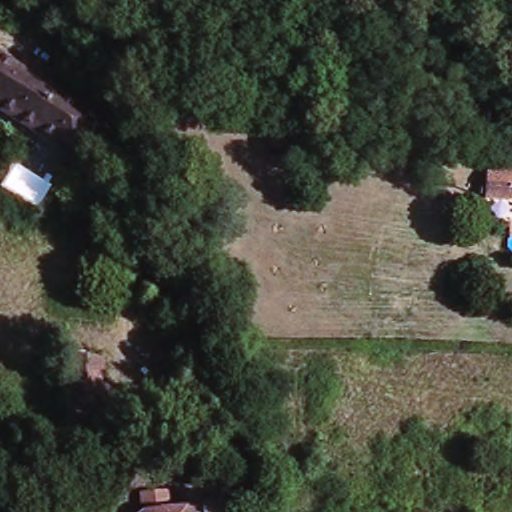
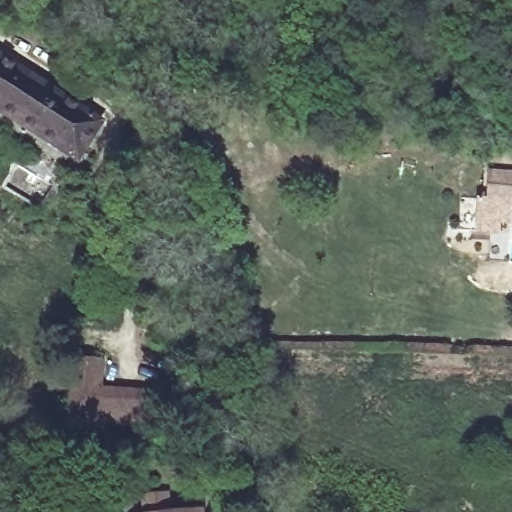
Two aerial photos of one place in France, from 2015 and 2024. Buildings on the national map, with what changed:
unchanged [(62,144),(0,101),(0,44),(26,62),(90,106),(62,144)]
unchanged [(90,106),(109,119),(82,158),(62,144),(90,106)]
unchanged [(480,195),(481,168),(512,170),(512,197),(480,195)]
unchanged [(114,382),(154,384),(152,415),(80,411),(82,348),(115,350),(114,382)]
unchanged [(109,501),(78,505),(76,490),(106,485),(109,501)]
unchanged [(160,494),(185,493),(185,512),(160,512),(160,494)]

